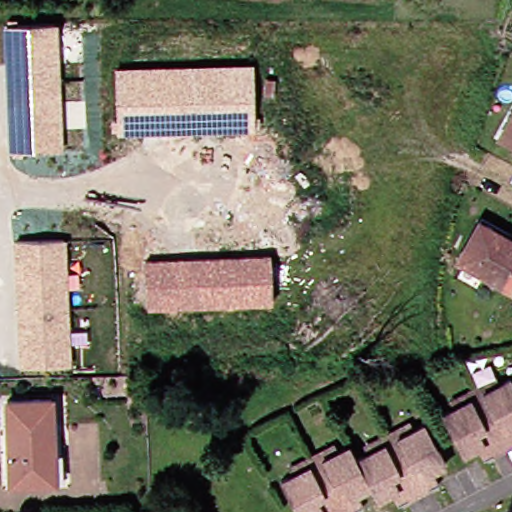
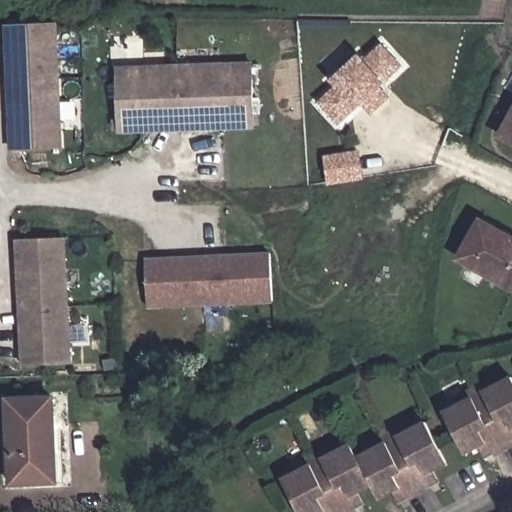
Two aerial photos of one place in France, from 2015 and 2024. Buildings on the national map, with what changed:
unchanged [(9,150),(3,26),(58,23),(62,150),(9,150)]
new [(363,59),(377,45),(400,66),(379,90),(388,100),(373,114),(364,103),(340,125),(318,102),(336,86),(332,80),(360,55),(363,59)]
unchanged [(118,133),(115,67),(253,62),(255,130),(118,133)]
unchanged [(505,137),(512,124),(512,142),(505,137)]
new [(358,150),(362,181),(328,185),(324,155),(358,150)]
unchanged [(466,261),(489,220),(512,233),(512,287),(466,261)]
unchanged [(70,365),(20,366),(15,240),(66,239),(70,365)]
unchanged [(270,253),(271,303),(146,308),(145,258),(270,253)]
unchanged [(493,456),(486,442),(465,453),(445,413),(455,408),(451,401),(498,377),(501,383),(512,378),(512,446),(493,456)]
unchanged [(8,485),(5,400),(49,399),(51,451),(59,451),(60,482),(8,485)]
unchanged [(448,463),(427,474),(435,487),(407,501),(400,488),(380,498),(373,485),(359,458),(370,453),(366,446),(412,422),(416,428),(427,423),(448,463)]
unchanged [(373,485),(352,496),(359,510),(354,512),(327,512),(325,510),(322,512),(300,512),(284,481),(295,475),(291,469),(338,445),(341,451),(352,445),(359,458),(373,485)]

